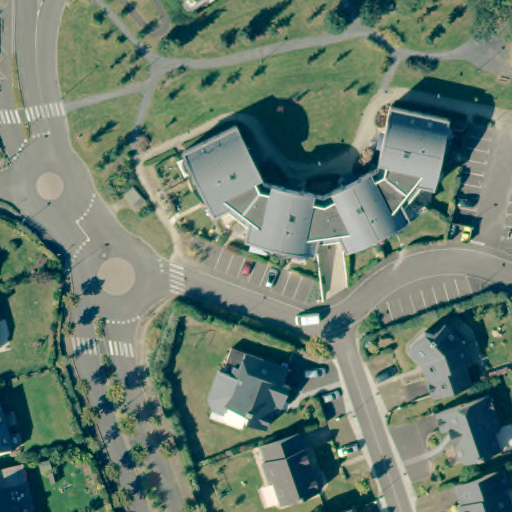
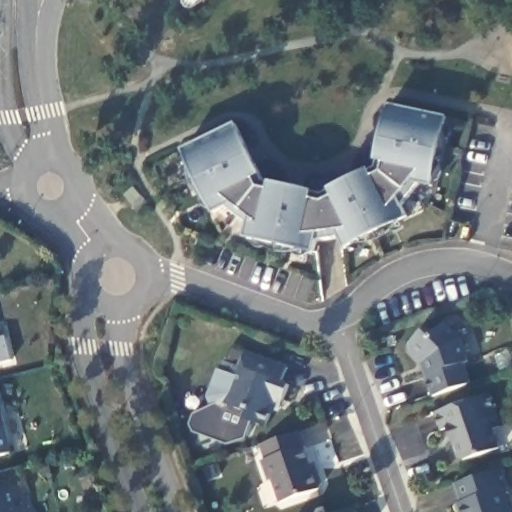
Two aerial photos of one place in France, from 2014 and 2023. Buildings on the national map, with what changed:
unchanged [(192,7),(188,0),(203,0),(192,7)]
unchanged [(211,3),(210,0),(216,0),(211,3)]
unchanged [(238,129),(266,186),(325,199),(379,172),(392,110),(450,122),(435,191),(430,212),(410,222),(348,253),(342,243),(319,246),(316,258),(248,243),(226,239),(217,218),(185,156),(238,129)]
unchanged [(123,200),(131,192),(143,205),(134,213),(123,200)]
unchanged [(430,375),(434,374),(430,361),(424,362),(414,351),(413,344),(428,331),(437,334),(448,323),(464,340),(472,362),(467,363),(474,383),(437,396),(430,375)]
unchanged [(253,425),(256,418),(234,410),(232,416),(221,412),(216,404),(226,378),(238,382),(242,373),(232,370),(239,352),(296,373),(290,388),(297,390),(291,407),(284,404),(274,432),(253,425)]
unchanged [(433,418),(488,399),(499,432),(492,434),(499,454),(463,466),(457,463),(451,446),(454,441),(451,432),(439,435),(433,418)]
unchanged [(10,459),(0,462),(0,419),(10,459)]
unchanged [(278,443),(298,436),(311,476),(317,478),(321,489),(318,495),(280,508),(272,485),(268,486),(261,466),(264,465),(259,450),(278,443)]
unchanged [(460,508),(453,489),(500,473),(507,493),(502,495),(508,512),(457,512),(456,509),(460,508)]
unchanged [(6,490),(12,512),(0,512),(0,492),(6,490)]

